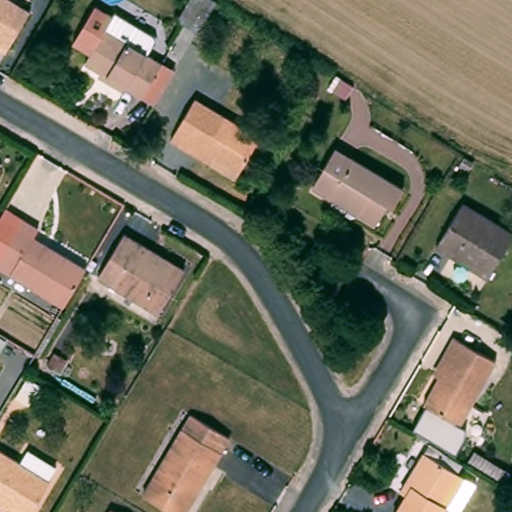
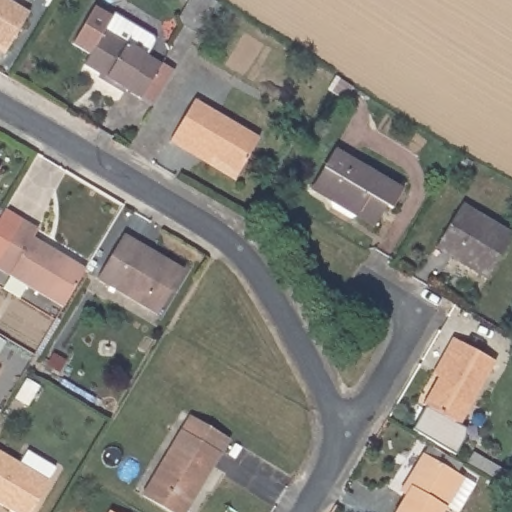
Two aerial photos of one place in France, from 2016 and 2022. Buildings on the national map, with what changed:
unchanged [(0,37),(0,0),(17,0),(45,17),(24,52),(0,37)]
unchanged [(164,63),(145,96),(88,62),(108,30),(164,63)]
unchanged [(263,139),(241,176),(207,156),(204,162),(174,144),(200,100),(263,139)]
unchanged [(331,195),(319,187),(322,182),(321,181),(342,147),(412,191),(405,205),(395,200),(380,224),(360,212),(352,214),(335,204),(331,195)]
unchanged [(4,166),(0,172),(0,163),(4,166)]
unchanged [(470,262),(474,256),(458,246),(453,253),(440,243),(465,200),(512,229),(512,238),(490,275),(470,262)]
unchanged [(27,215),(45,224),(39,232),(94,266),(71,302),(0,259),(0,258),(27,215)]
unchanged [(187,269),(162,311),(101,275),(126,232),(187,269)]
unchanged [(2,241),(0,244),(0,239),(2,241)]
unchanged [(5,280),(0,290),(0,276),(5,280)]
unchanged [(451,353),(461,336),(505,362),(465,427),(428,406),(458,357),(451,353)]
unchanged [(195,412),(231,435),(186,512),(171,512),(144,496),(195,412)]
unchanged [(403,480),(421,450),(454,470),(471,478),(455,508),(443,502),(437,512),(395,512),(411,485),(403,480)]
unchanged [(19,463),(25,451),(57,470),(50,482),(31,512),(12,512),(0,505),(0,452),(19,463)]
unchanged [(109,512),(112,507),(120,512),(109,512)]

